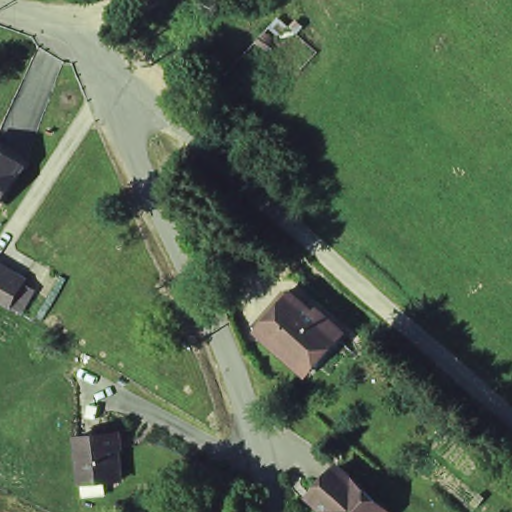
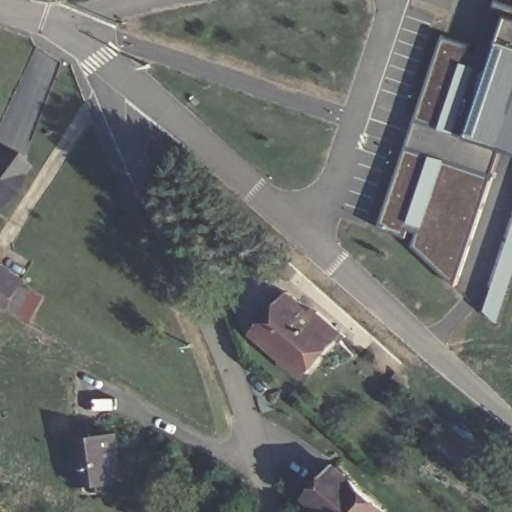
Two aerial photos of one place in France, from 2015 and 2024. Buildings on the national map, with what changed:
new [(456,283),(415,245),(420,231),(409,228),(407,235),(381,227),(445,37),(470,45),(468,52),(478,56),(497,1),(512,6),(512,150),(501,147),(492,174),(456,283)]
unchanged [(24,174),(0,211),(0,152),(27,169),(24,174)]
unchanged [(6,308),(0,304),(0,268),(22,281),(6,308)]
unchanged [(308,369),(260,340),(282,301),(339,335),(327,355),(316,373),(308,369)]
unchanged [(127,479),(87,483),(82,439),(122,435),(127,479)]
unchanged [(330,512),(319,497),(330,489),(350,474),(379,512),(330,512)]

